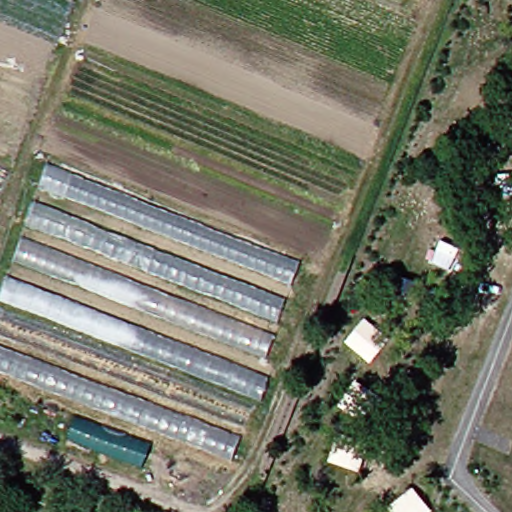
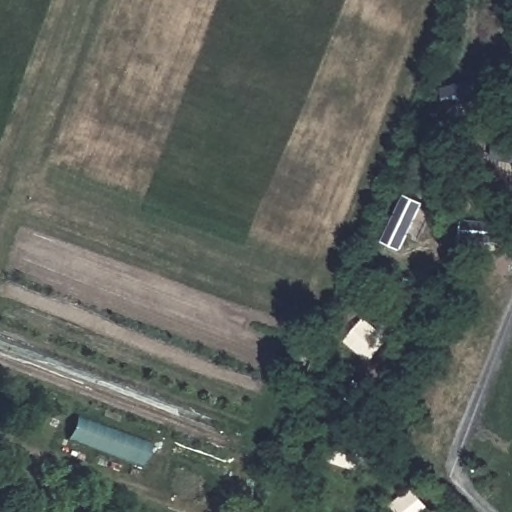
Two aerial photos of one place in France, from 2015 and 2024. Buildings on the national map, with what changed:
demolished [(47,164),(302,259),(280,320),(27,222),(47,164)]
demolished [(20,264),(28,242),(280,338),(272,360),(20,264)]
demolished [(7,297),(14,278),(271,380),(263,399),(7,297)]
demolished [(0,371),(0,345),(247,439),(237,462),(0,371)]
unchanged [(154,440),(145,465),(70,438),(79,413),(154,440)]

